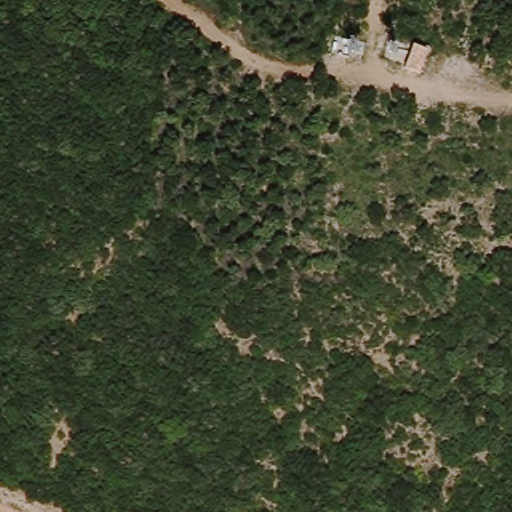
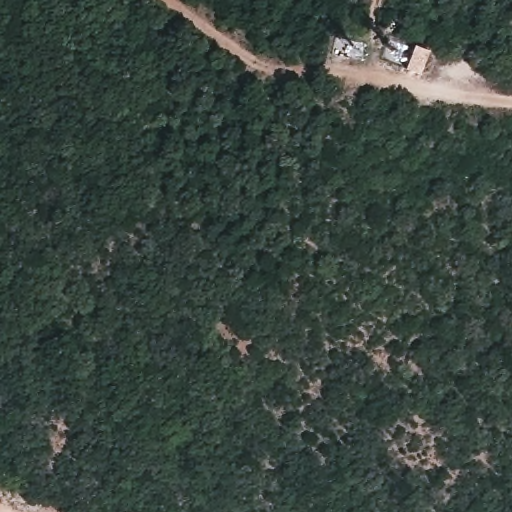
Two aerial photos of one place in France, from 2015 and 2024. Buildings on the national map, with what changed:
unchanged [(435,46),(425,70),(407,65),(417,41),(435,46)]

